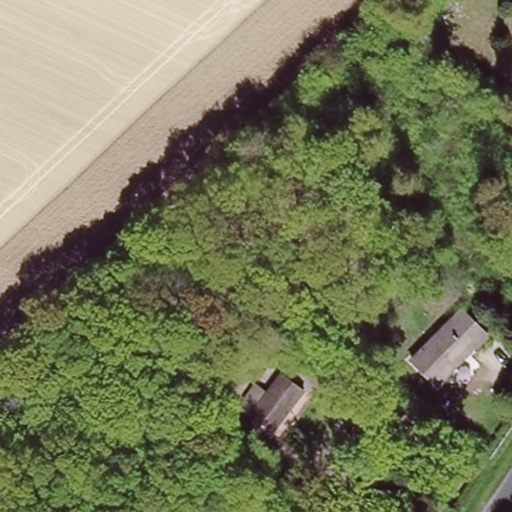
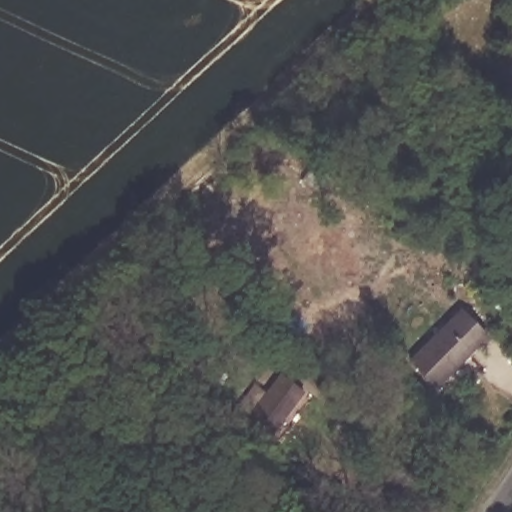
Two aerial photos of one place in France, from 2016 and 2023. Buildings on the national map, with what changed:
unchanged [(340,173),(330,186),(307,171),(317,158),(340,173)]
unchanged [(462,310),(487,335),(437,385),(412,360),(462,310)]
unchanged [(260,446),(223,418),(232,406),(239,410),(256,386),(266,393),(282,373),(303,390),(260,446)]

